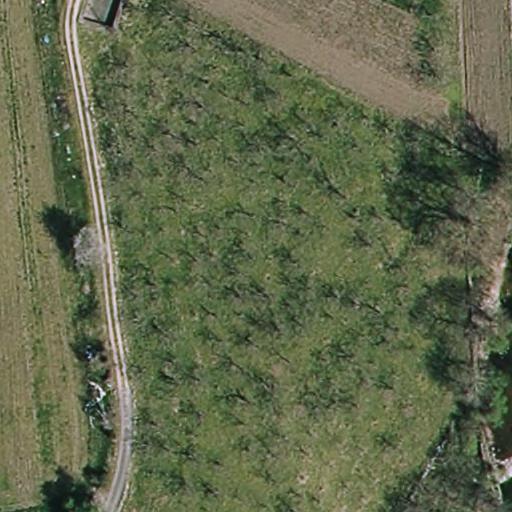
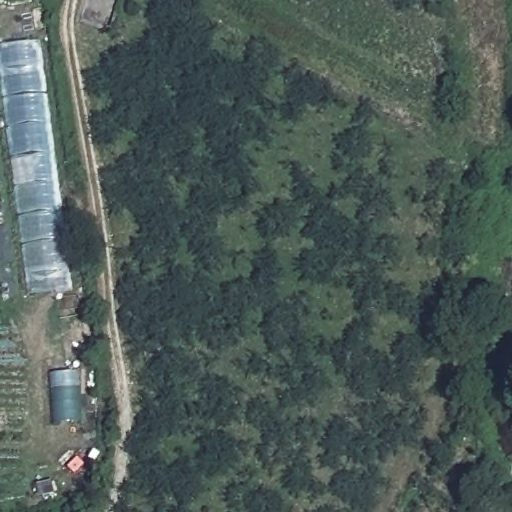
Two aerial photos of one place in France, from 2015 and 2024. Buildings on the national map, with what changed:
new [(0,79),(0,47),(39,42),(72,291),(27,296),(0,79)]

